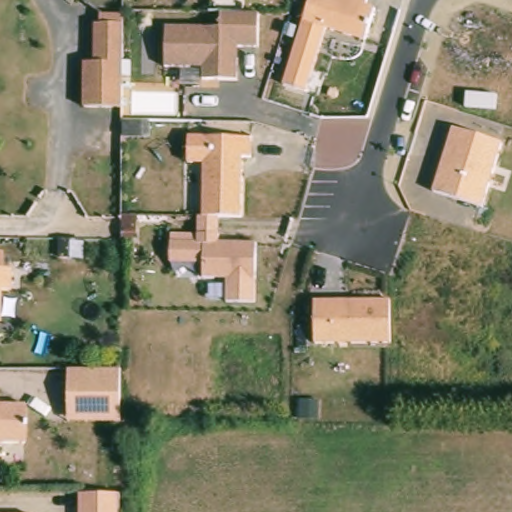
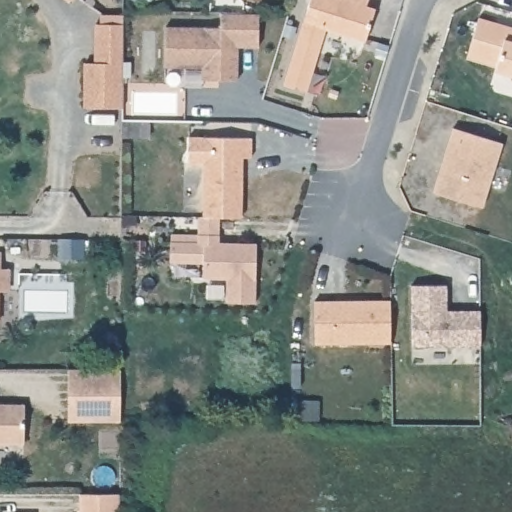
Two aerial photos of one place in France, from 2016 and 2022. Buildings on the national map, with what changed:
unchanged [(363,5),(374,9),(364,41),(325,28),(305,92),(283,85),(309,0),(365,0),(363,5)]
unchanged [(219,29),(218,16),(257,16),(256,50),(237,50),(237,83),(203,82),(203,70),(164,69),(164,28),(219,29)]
new [(497,65),(467,57),(479,17),(512,27),(512,76),(495,72),(497,65)]
unchanged [(123,46),(122,103),(85,103),(85,58),(95,59),(96,20),(123,20),(123,46)]
unchanged [(500,145),(482,209),(433,194),(451,131),(500,145)]
unchanged [(251,138),(251,158),(242,158),(241,218),(210,217),(203,217),(204,164),(188,163),(188,137),(251,138)]
unchanged [(196,245),(196,237),(220,237),(220,245),(253,245),(254,283),(202,282),(202,267),(169,267),(169,245),(196,245)]
unchanged [(7,292),(0,292),(0,270),(7,270),(7,292)]
new [(446,286),(446,315),(462,315),(462,311),(480,311),(480,346),(411,347),(411,286),(446,286)]
unchanged [(389,343),(314,345),(314,299),(390,298),(389,343)]
unchanged [(121,422),(68,422),(68,407),(68,369),(120,369),(121,369),(121,407),(121,420),(121,422)]
unchanged [(22,402),(23,441),(0,441),(0,402),(22,402)]
unchanged [(116,512),(79,512),(78,496),(116,496),(116,512)]

